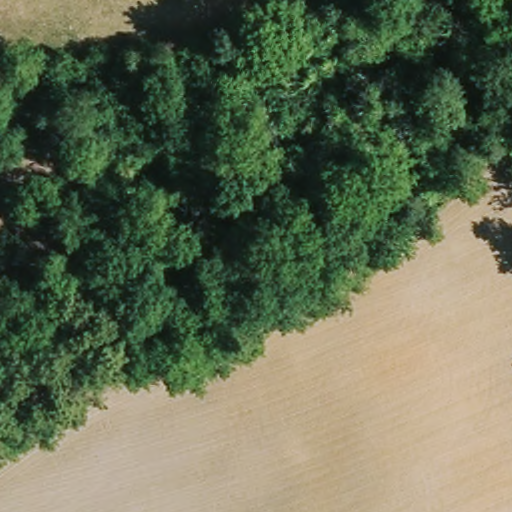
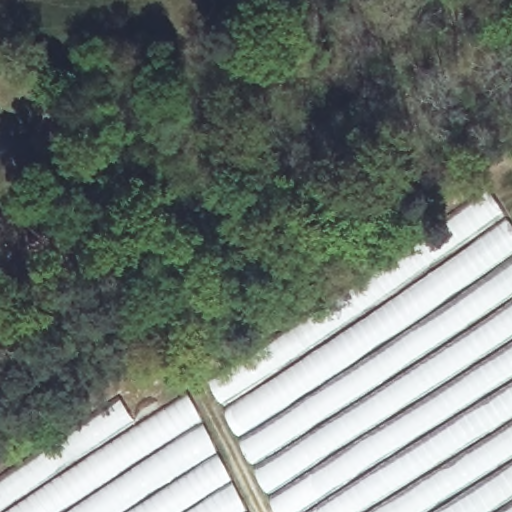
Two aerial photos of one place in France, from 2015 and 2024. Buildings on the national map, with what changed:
new [(494,188),(512,216),(512,512),(277,512),(210,378),(494,188)]
new [(139,426),(189,392),(251,512),(0,512),(0,480),(121,397),(139,426)]

